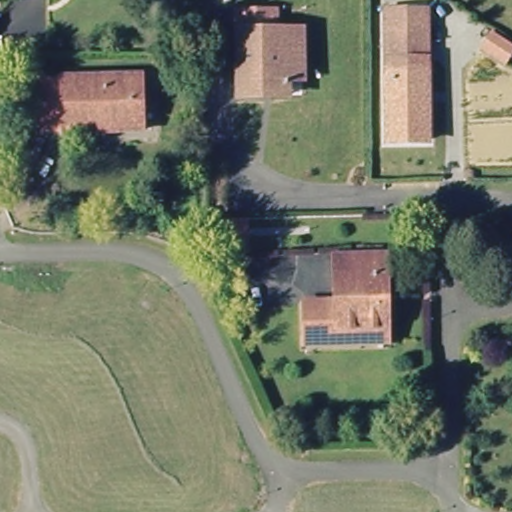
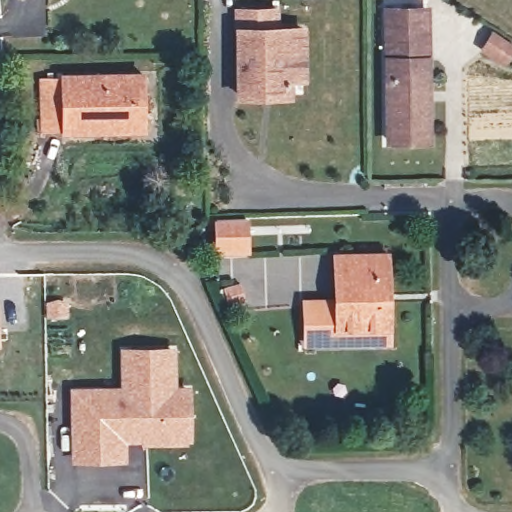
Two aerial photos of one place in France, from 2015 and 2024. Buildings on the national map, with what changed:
unchanged [(389,139),(384,8),(423,8),(430,138),(389,139)]
unchanged [(256,104),(232,103),(232,20),(270,20),(270,39),(295,40),(295,60),(295,90),(281,89),(280,98),(280,104),(256,104)]
unchanged [(479,63),(491,45),(512,58),(512,59),(499,76),(479,63)]
unchanged [(42,78),(139,77),(141,130),(43,128),(42,78)]
unchanged [(247,251),(213,253),(211,219),(245,218),(247,251)]
unchanged [(342,342),(313,343),(310,300),(338,299),(336,254),(386,252),(388,323),(389,340),(342,342)]
new [(120,386),(119,347),(177,346),(176,386),(191,385),(192,441),(187,441),(186,445),(142,446),(141,441),(126,441),(126,462),(71,463),(70,388),(120,386)]

